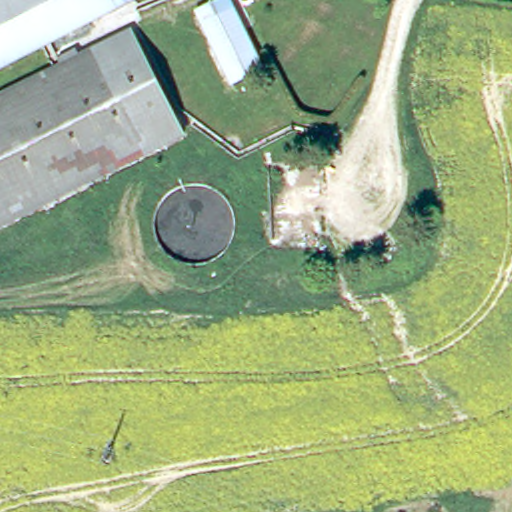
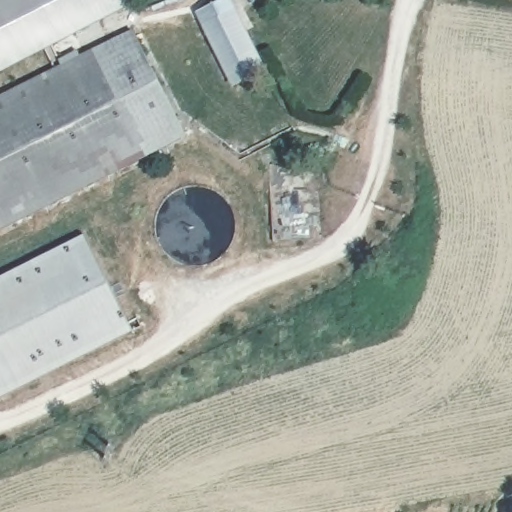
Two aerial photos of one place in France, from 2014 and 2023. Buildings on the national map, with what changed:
unchanged [(120,4),(0,65),(0,0),(118,0),(120,4)]
unchanged [(262,75),(233,88),(197,12),(224,0),(229,0),(262,75)]
unchanged [(182,134),(0,222),(0,96),(132,31),(182,134)]
new [(133,332),(0,398),(0,277),(85,234),(133,332)]

